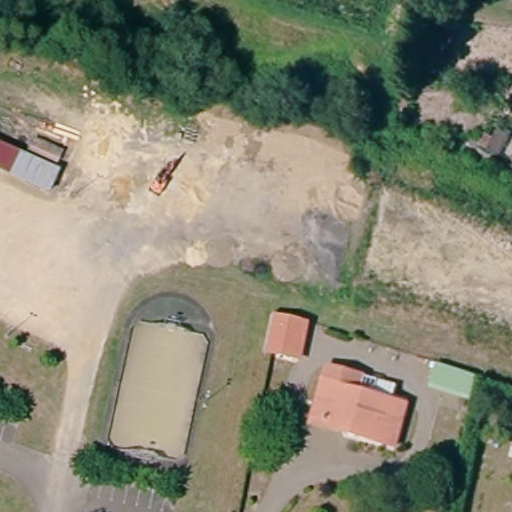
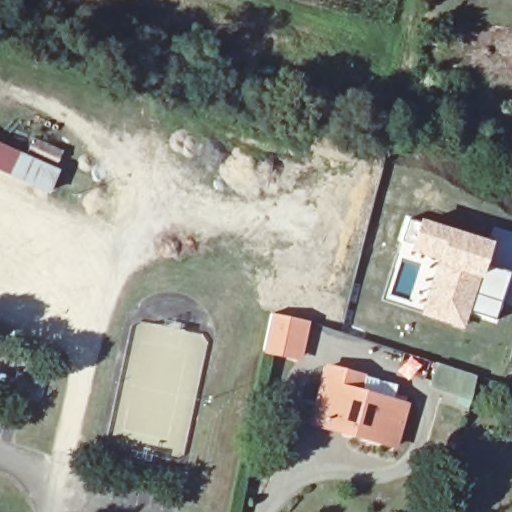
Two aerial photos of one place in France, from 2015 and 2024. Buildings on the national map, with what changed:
unchanged [(51,192),(0,168),(0,143),(61,172),(51,192)]
new [(399,241),(407,216),(418,219),(494,241),(486,264),(471,311),(464,330),(420,315),(437,263),(408,252),(410,245),(399,241)]
new [(486,264),(511,271),(496,319),(471,311),(486,264)]
unchanged [(263,352),(271,313),(310,322),(303,361),(263,352)]
unchanged [(467,400),(428,388),(436,363),(479,377),(471,400),(467,400)]
unchanged [(317,398),(325,364),(398,383),(394,400),(407,405),(396,445),(348,432),(310,422),(317,398)]

